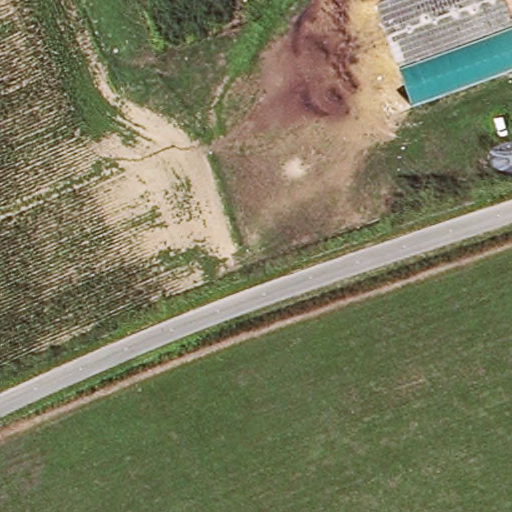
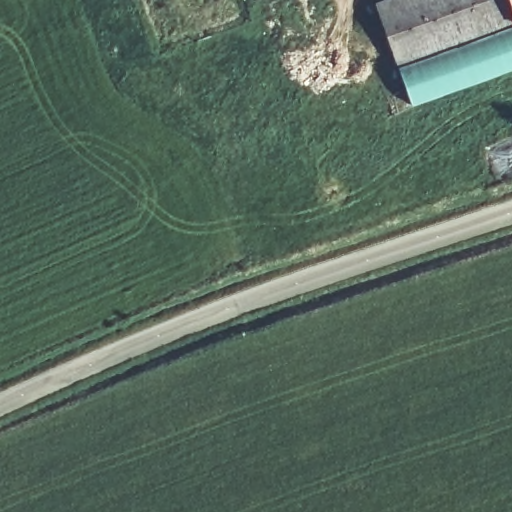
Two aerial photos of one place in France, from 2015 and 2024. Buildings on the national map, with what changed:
unchanged [(385,0),(512,0),(512,30),(401,68),(377,3),(385,0)]
unchanged [(412,103),(401,68),(512,30),(512,69),(412,103)]

